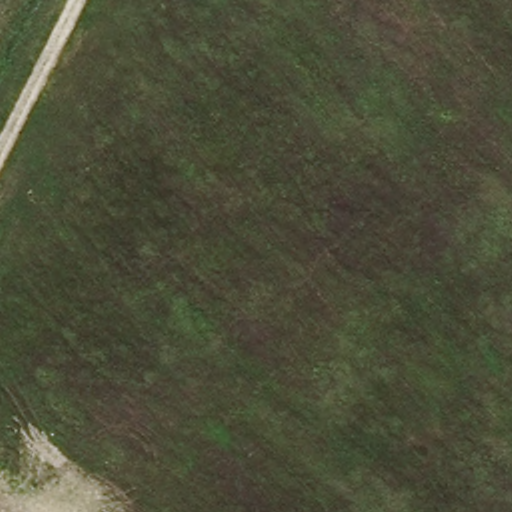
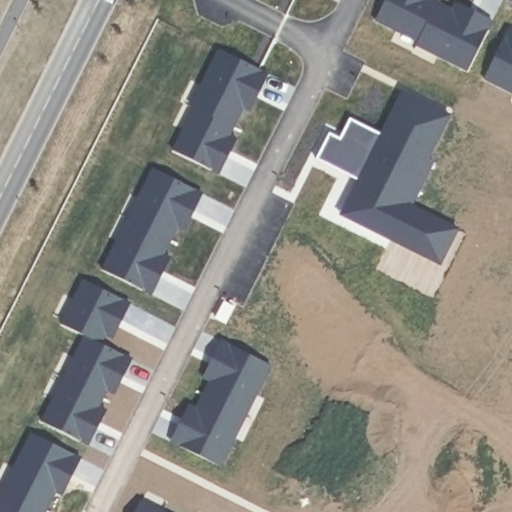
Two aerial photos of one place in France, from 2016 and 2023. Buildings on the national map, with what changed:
new [(385,0),(433,0),(472,20),(475,16),(492,25),(467,71),(440,57),(442,52),(419,40),(420,38),(394,25),(392,29),(375,20),(385,0)]
new [(512,35),(512,92),(484,80),(507,32),(512,35)]
new [(182,135),(185,136),(198,110),(195,109),(210,80),(205,77),(219,50),(265,72),(257,89),(253,87),(220,154),(228,158),(220,175),(174,151),(182,135)]
new [(330,134),(340,139),(350,119),(380,135),(402,92),(450,116),(428,157),(435,161),(412,206),(432,217),(415,252),(349,219),(366,186),(316,160),(330,134)]
new [(117,243),(122,246),(146,200),(140,197),(153,169),(200,192),(192,209),(188,207),(154,275),(157,277),(150,293),(103,271),(117,243)]
new [(432,217),(458,230),(440,265),(415,252),(432,217)]
new [(50,405),(55,407),(81,356),(76,352),(85,337),(66,327),(80,300),(75,297),(84,280),(131,304),(122,320),(115,316),(101,343),(132,360),(123,376),(117,373),(90,425),(98,429),(89,446),(42,422),(50,405)]
new [(225,302),(235,307),(225,323),(216,319),(225,302)]
new [(182,426),(185,428),(220,361),(217,358),(225,342),(272,366),(257,393),(252,390),(228,436),(234,438),(220,466),(174,442),(182,426)]
new [(17,461),(31,433),(78,457),(70,473),(66,472),(46,512),(0,512),(0,506),(21,463),(17,461)]

